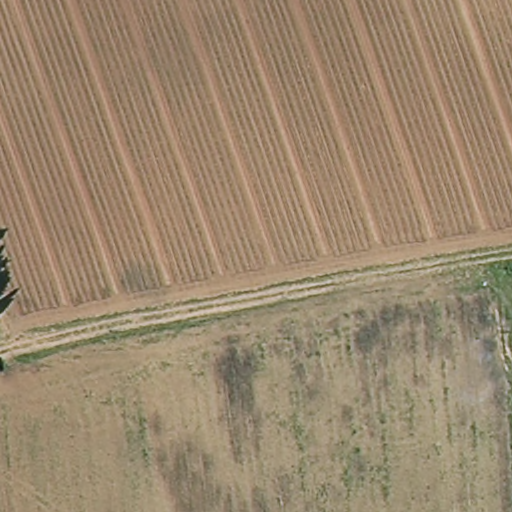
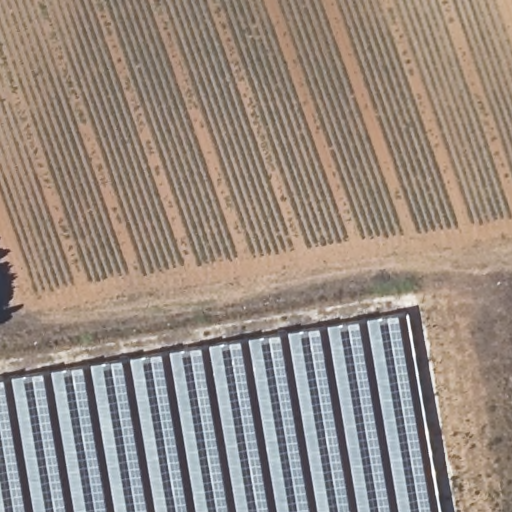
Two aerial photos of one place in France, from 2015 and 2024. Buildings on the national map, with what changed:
new [(403,311),(435,512),(0,512),(0,376),(403,311)]

